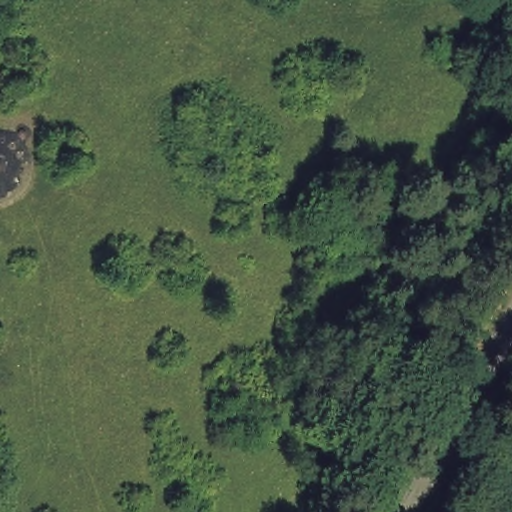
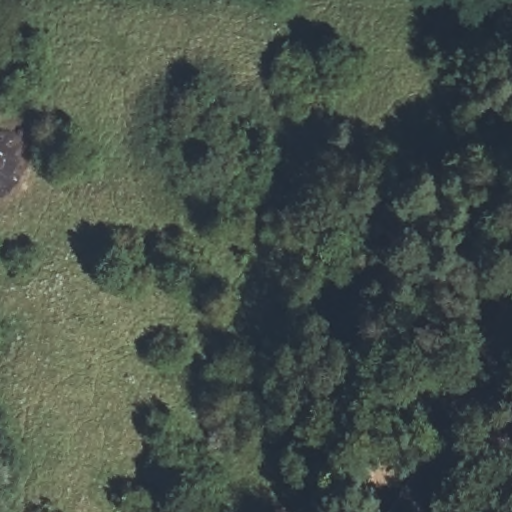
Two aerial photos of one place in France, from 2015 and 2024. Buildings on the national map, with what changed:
unchanged [(4,128),(18,131),(28,141),(34,155),(35,169),(33,183),(27,193),(15,203),(3,206),(0,205),(0,128),(4,128)]

